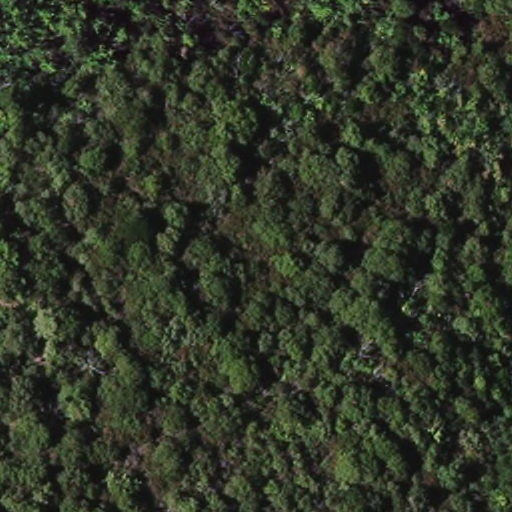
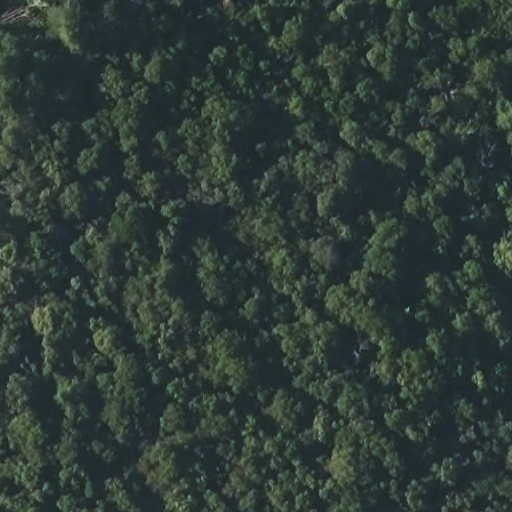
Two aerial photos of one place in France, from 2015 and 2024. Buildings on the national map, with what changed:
[]

